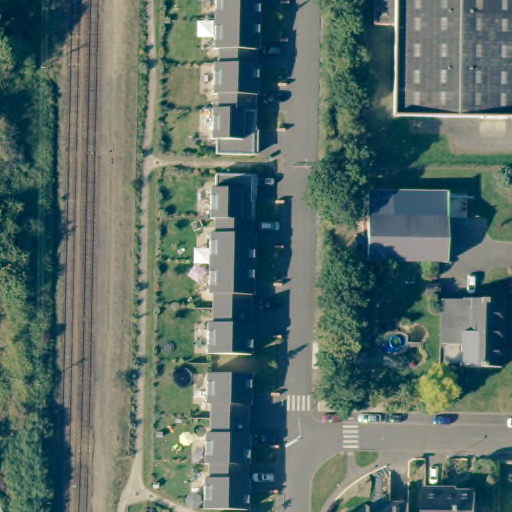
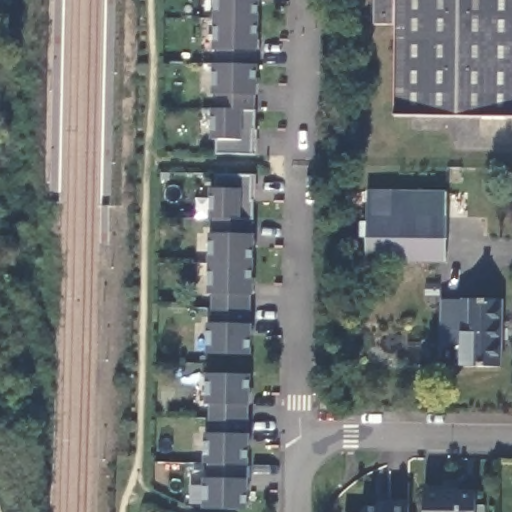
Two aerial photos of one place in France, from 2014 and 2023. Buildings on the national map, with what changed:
unchanged [(256,38),(255,63),(257,63),(256,83),(255,83),(254,108),(256,108),(255,128),(254,128),(253,153),(216,152),(216,138),(212,138),(212,107),(217,107),(217,93),(212,93),(213,62),(218,62),(218,48),(213,48),(215,0),(258,0),(257,38),(256,38)]
unchanged [(397,116),(398,25),(376,25),(376,0),(512,0),(512,117),(397,116)]
unchanged [(253,173),(253,198),(254,198),(254,218),(252,218),(252,243),(254,243),(253,283),(251,283),(250,333),(252,333),(251,353),(208,352),(208,322),(213,322),(214,292),(209,292),(210,232),(215,232),(215,217),(210,217),(211,187),(215,186),(216,172),(253,173)]
unchanged [(371,261),(372,191),(452,192),(452,216),(451,262),(371,261)]
unchanged [(501,362),(461,362),(461,338),(441,337),(442,295),(461,295),(462,294),(502,294),(501,362)]
unchanged [(251,373),(251,393),(249,393),(248,443),(250,443),(249,463),(248,463),(247,488),(249,488),(248,508),(205,507),(205,477),(210,477),(210,462),(206,462),(206,432),(211,432),(212,402),(207,402),(207,372),(251,373)]
unchanged [(446,486),(446,488),(478,489),(478,512),(426,512),(426,485),(446,486)]
unchanged [(364,506),(368,502),(389,503),(390,498),(411,498),(411,512),(364,512),(364,506)]

